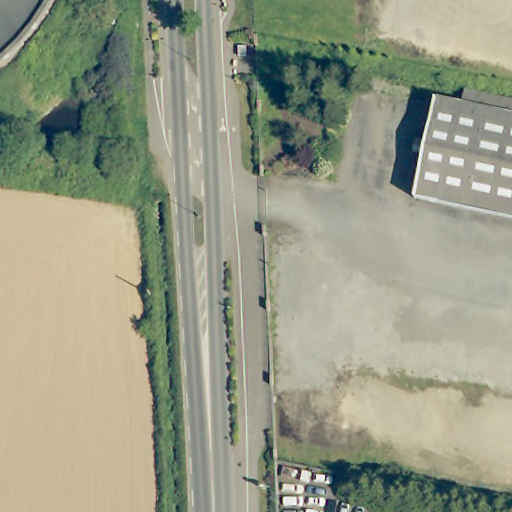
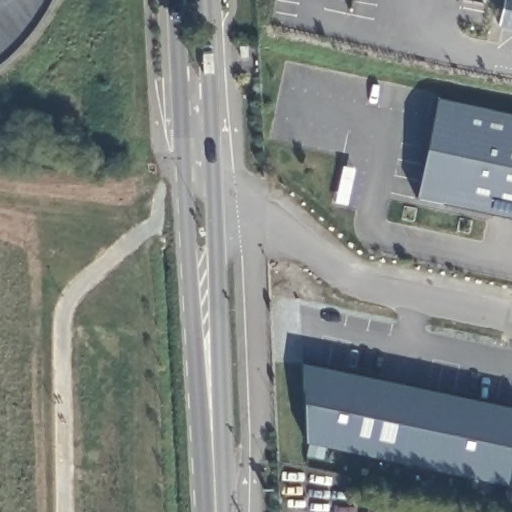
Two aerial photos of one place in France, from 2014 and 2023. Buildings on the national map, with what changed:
unchanged [(42,16),(37,25),(32,31),(25,40),(19,46),(10,55),(1,64),(0,64),(0,0),(52,0),(47,7),(42,16)]
new [(502,0),(512,0),(512,29),(497,26),(502,0)]
unchanged [(463,101),(512,111),(512,219),(417,198),(427,152),(430,139),(439,96),(463,101)]
new [(305,444),(301,363),(512,408),(512,449),(503,487),(305,444)]

